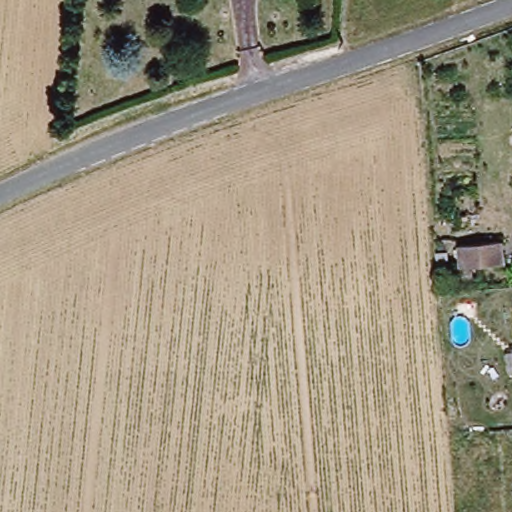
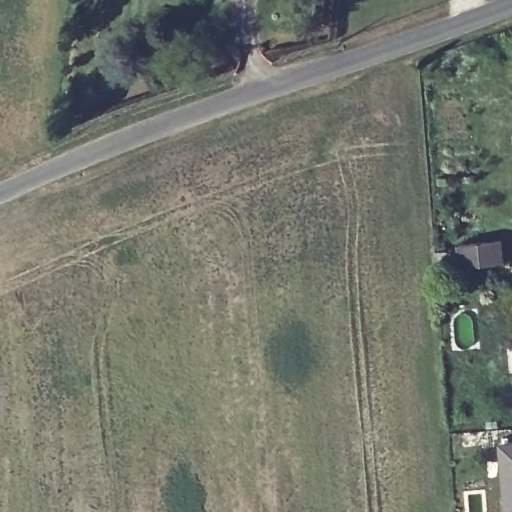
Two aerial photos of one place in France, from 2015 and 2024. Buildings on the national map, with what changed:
unchanged [(463,265),(462,250),(462,239),(500,237),(501,247),(502,263),(463,265)]
new [(497,444),(512,443),(512,512),(503,512),(497,444)]

